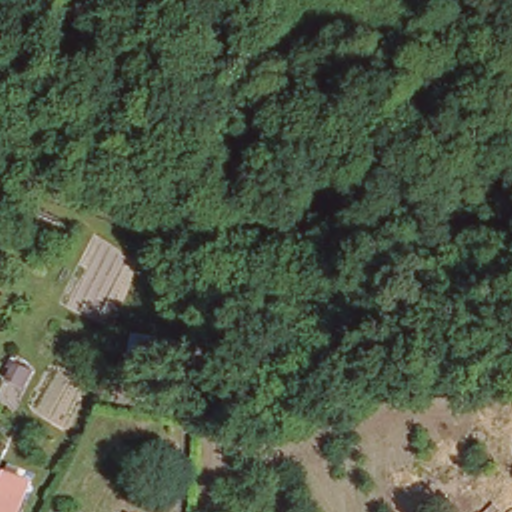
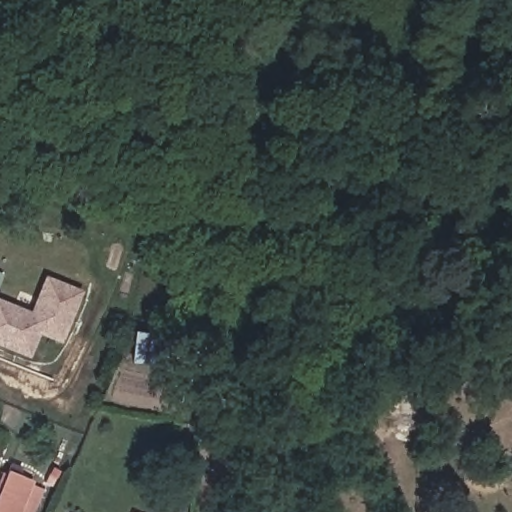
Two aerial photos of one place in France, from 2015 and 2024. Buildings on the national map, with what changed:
new [(50,289),(55,282),(81,292),(61,340),(41,336),(31,360),(0,347),(0,301),(30,311),(41,285),(50,289)]
new [(151,362),(151,365),(130,362),(135,332),(177,338),(176,348),(159,363),(151,362)]
unchanged [(32,480),(20,512),(0,512),(0,491),(8,470),(32,480)]

